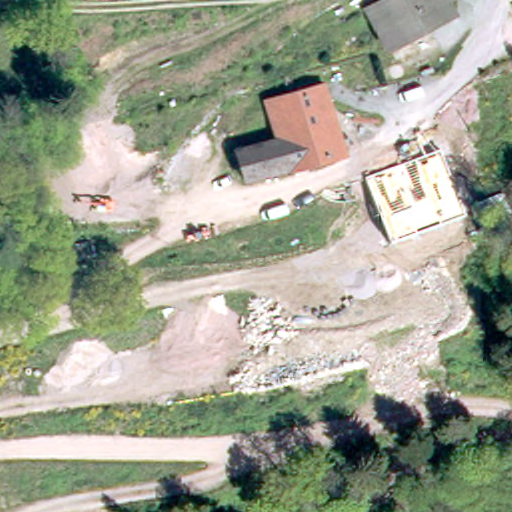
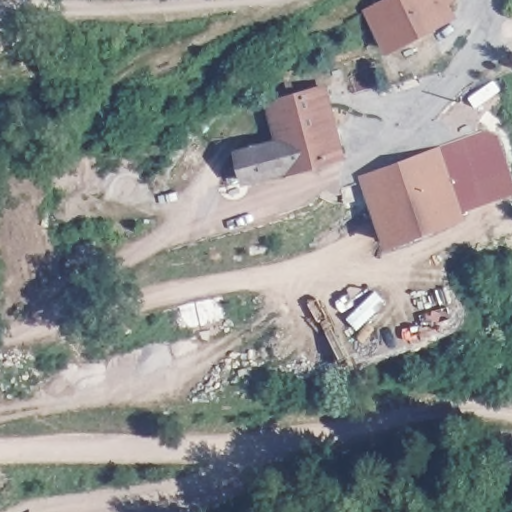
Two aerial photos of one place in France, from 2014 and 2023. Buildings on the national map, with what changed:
unchanged [(370,14),(393,0),(394,0),(452,0),(457,11),(390,62),(392,56),(381,36),(370,14)]
unchanged [(281,142),(277,132),(267,106),(318,90),(325,88),(346,151),(348,158),(255,187),(245,155),(281,142)]
new [(484,128),(500,132),(512,167),(512,192),(465,208),(441,144),(484,128)]
new [(468,219),(386,249),(358,175),(441,144),(468,219)]

